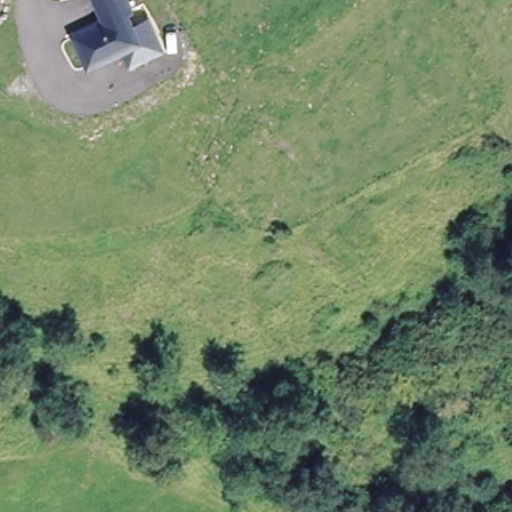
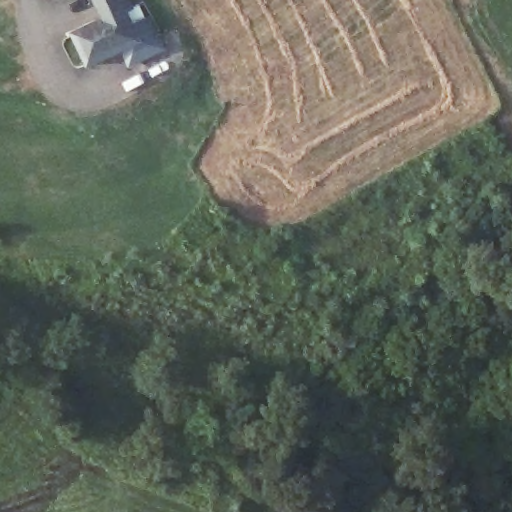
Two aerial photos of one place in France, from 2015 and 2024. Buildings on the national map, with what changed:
unchanged [(137,8),(130,11),(134,20),(150,14),(168,49),(129,69),(122,52),(87,69),(69,33),(101,17),(93,0),(133,0),(137,8)]

